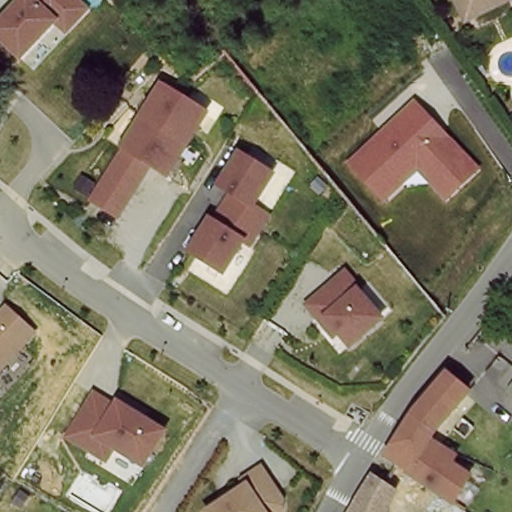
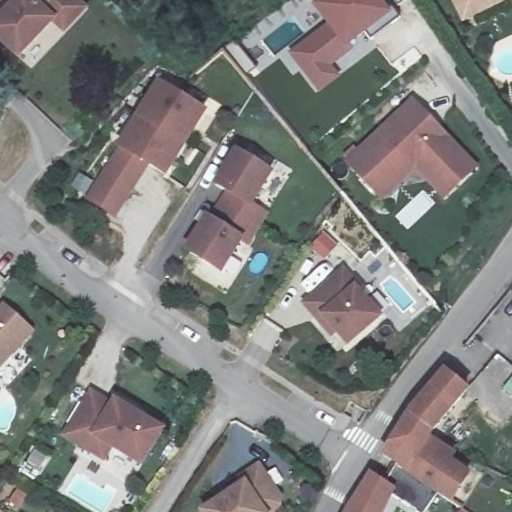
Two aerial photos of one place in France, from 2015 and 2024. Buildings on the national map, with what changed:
unchanged [(15,0),(72,0),(86,15),(66,33),(56,24),(20,60),(0,42),(0,15),(15,0)]
new [(317,89),(308,77),(289,53),(327,24),(312,5),(318,0),(384,0),(397,16),(367,39),(361,31),(344,44),(347,47),(325,65),(334,76),(317,89)]
unchanged [(452,0),(485,0),(465,10),(459,14),(452,0)]
demolished [(486,64),(499,84),(479,97),(465,77),(486,64)]
unchanged [(89,199),(118,146),(155,81),(208,109),(169,179),(151,170),(120,219),(89,199)]
unchanged [(447,200),(418,170),(382,202),(346,162),(415,99),(482,167),(447,200)]
unchanged [(507,114),(512,111),(512,122),(507,114)]
unchanged [(228,174),(242,153),(277,176),(256,207),(271,217),(268,221),(251,246),(245,242),(225,273),(191,252),(211,220),(215,222),(232,195),(220,187),(228,174)]
unchanged [(327,287),(347,271),(361,287),(357,291),(382,317),(365,332),(350,343),(334,325),(330,328),(308,302),(327,287)]
unchanged [(469,338),(470,337),(512,288),(512,311),(481,347),(469,338)]
unchanged [(0,369),(0,312),(5,307),(35,330),(0,369)]
unchanged [(458,508),(447,501),(427,488),(409,476),(396,467),(384,457),(409,422),(445,373),(469,394),(434,436),(480,478),(458,508)]
unchanged [(87,453),(65,440),(92,397),(113,410),(116,406),(163,436),(141,470),(111,451),(103,463),(87,453)]
unchanged [(377,488),(381,491),(396,467),(409,476),(405,482),(407,483),(398,499),(393,497),(385,512),(351,512),(367,482),(377,488)]
unchanged [(205,512),(267,471),(289,507),(282,512),(205,512)]

